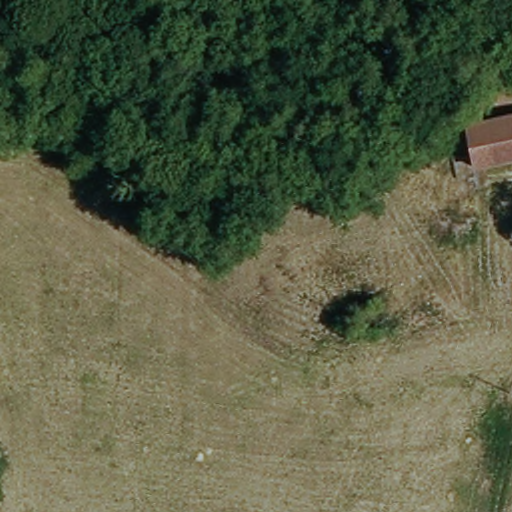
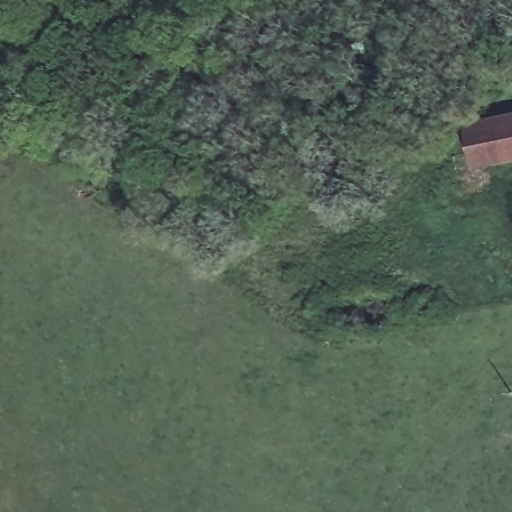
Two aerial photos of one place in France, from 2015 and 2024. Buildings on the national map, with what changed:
unchanged [(467,120),(512,112),(512,153),(475,159),(467,120)]

